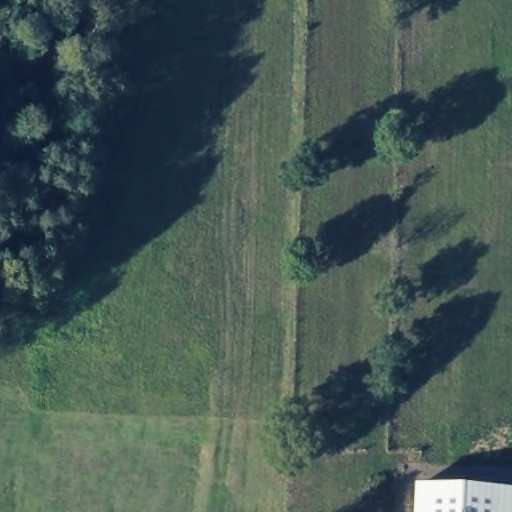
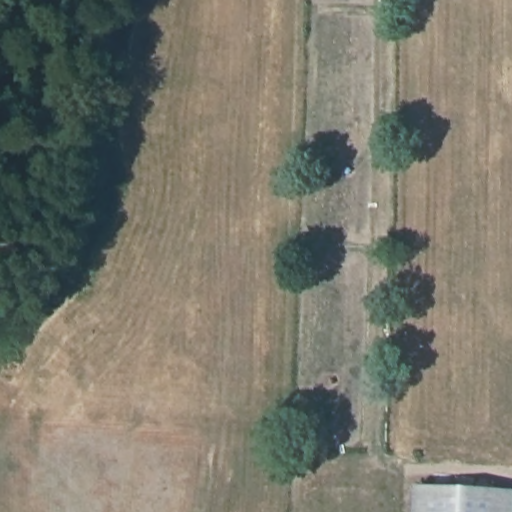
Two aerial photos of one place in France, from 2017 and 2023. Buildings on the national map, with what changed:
unchanged [(512,491),(512,512),(414,512),(415,486),(512,491)]

